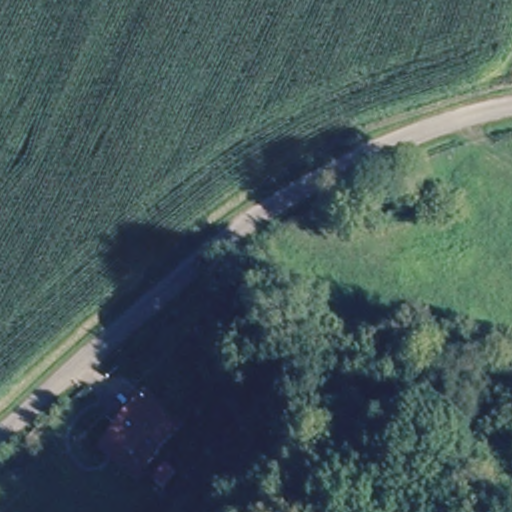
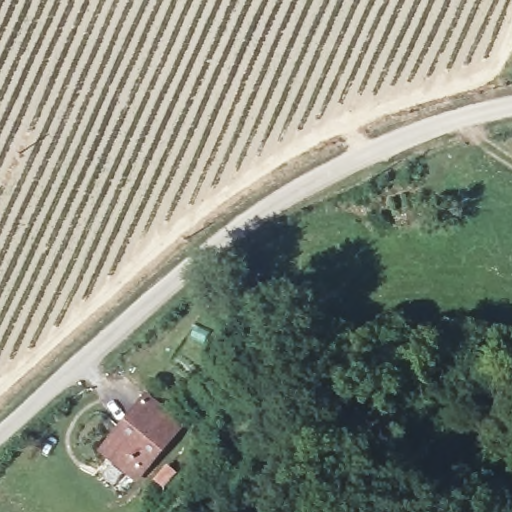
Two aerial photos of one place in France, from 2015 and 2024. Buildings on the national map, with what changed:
unchanged [(96,452),(106,442),(117,431),(147,399),(178,431),(137,472),(129,480),(96,452)]

